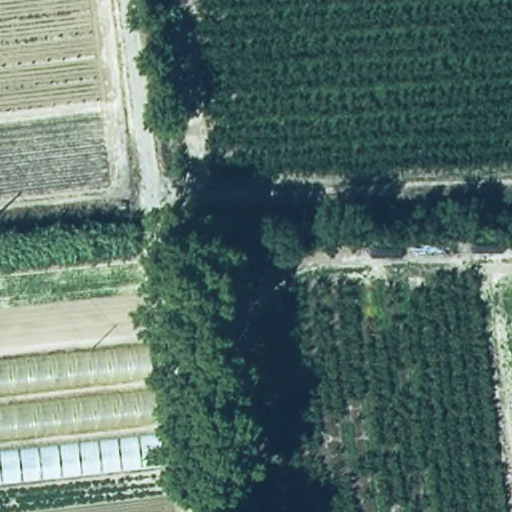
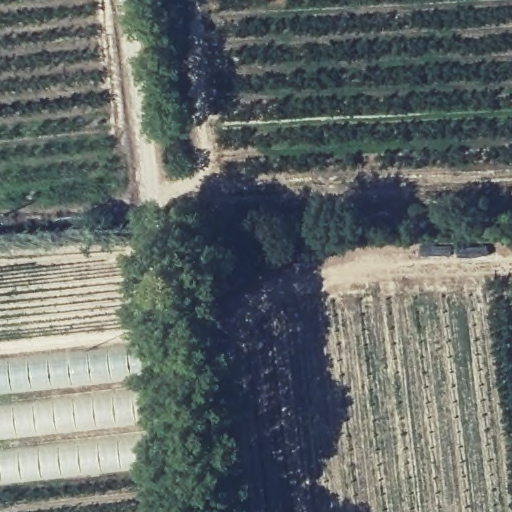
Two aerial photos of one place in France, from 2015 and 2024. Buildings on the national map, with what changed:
unchanged [(165,466),(0,486),(0,360),(145,344),(165,466)]

